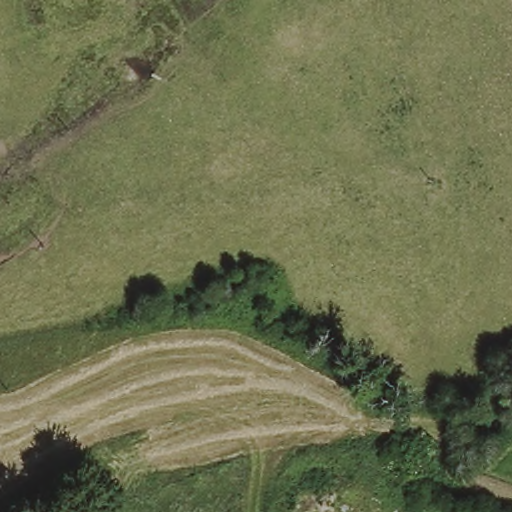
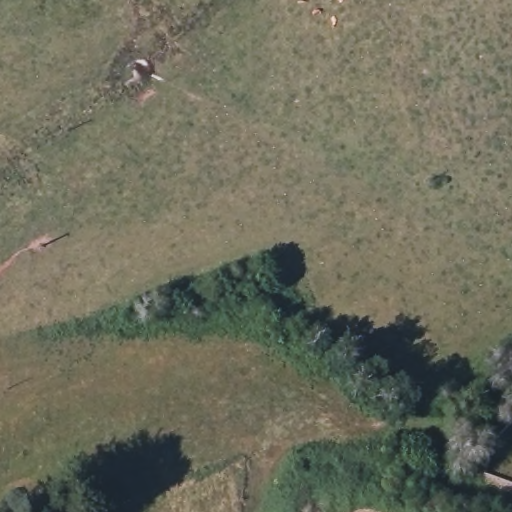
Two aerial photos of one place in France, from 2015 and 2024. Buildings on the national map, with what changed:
unchanged [(288,314),(270,318),(263,293),(282,288),(288,314)]

